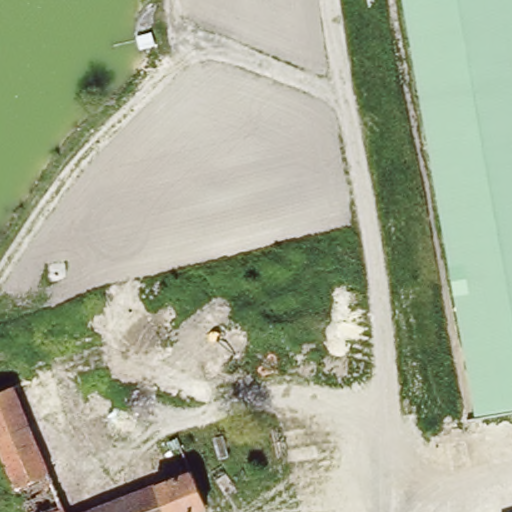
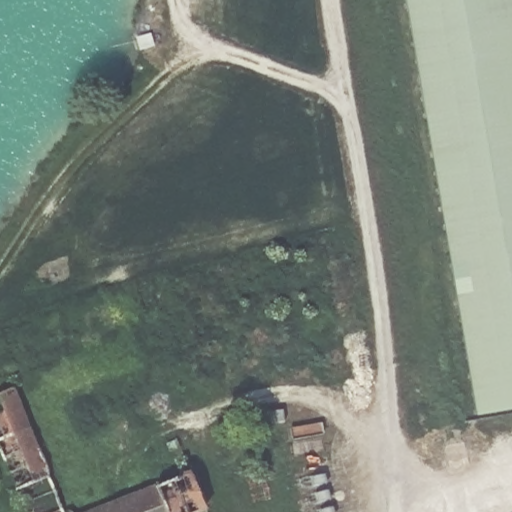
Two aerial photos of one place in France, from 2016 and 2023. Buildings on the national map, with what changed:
unchanged [(478,405),(407,0),(512,0),(512,401),(478,405)]
unchanged [(0,391),(15,385),(65,512),(27,512),(0,442),(0,391)]
unchanged [(206,505),(190,512),(81,512),(191,468),(206,505)]

